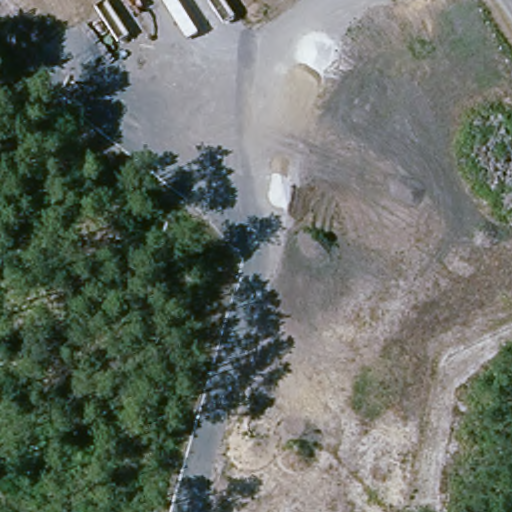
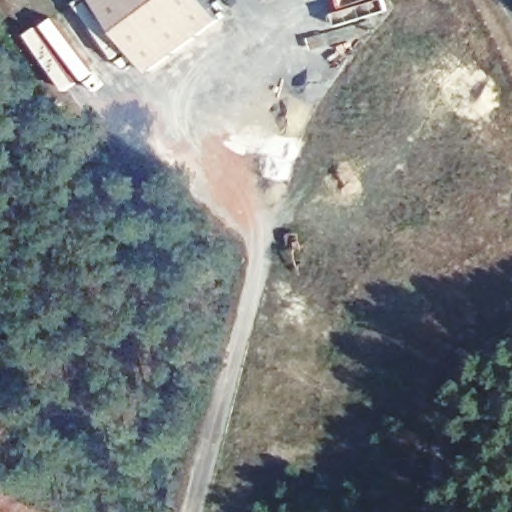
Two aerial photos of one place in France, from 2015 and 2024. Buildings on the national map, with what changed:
new [(150,74),(95,0),(208,0),(224,21),(150,74)]

